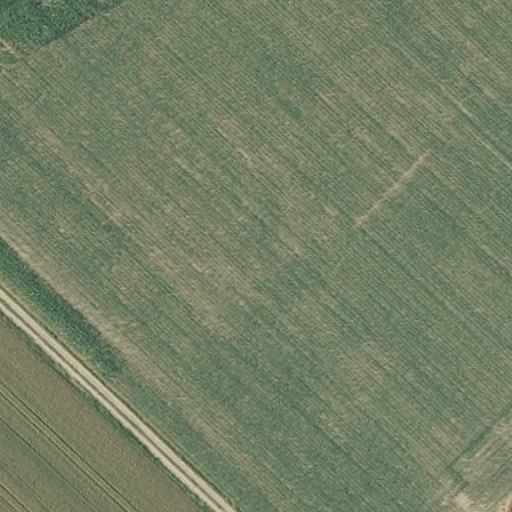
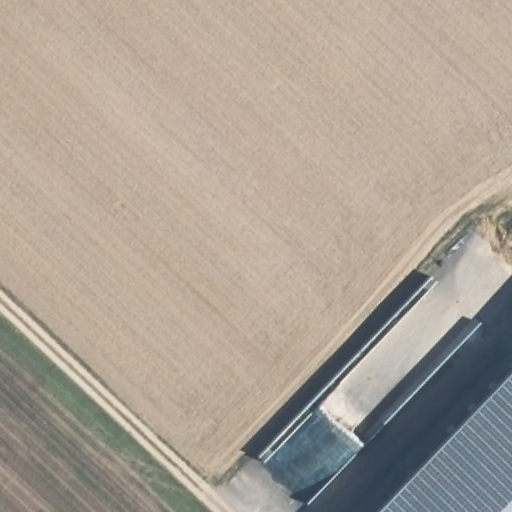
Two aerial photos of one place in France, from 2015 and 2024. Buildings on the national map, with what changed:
new [(370,512),(512,364),(512,512),(370,512)]

